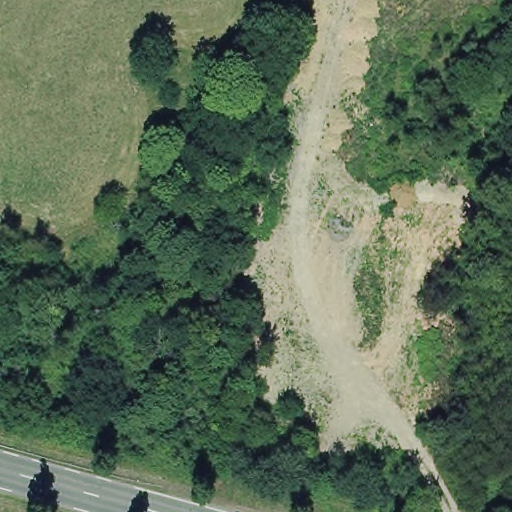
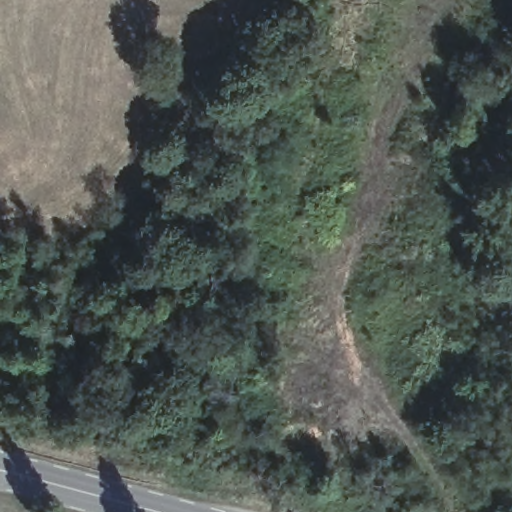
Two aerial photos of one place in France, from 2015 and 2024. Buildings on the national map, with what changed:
[]

